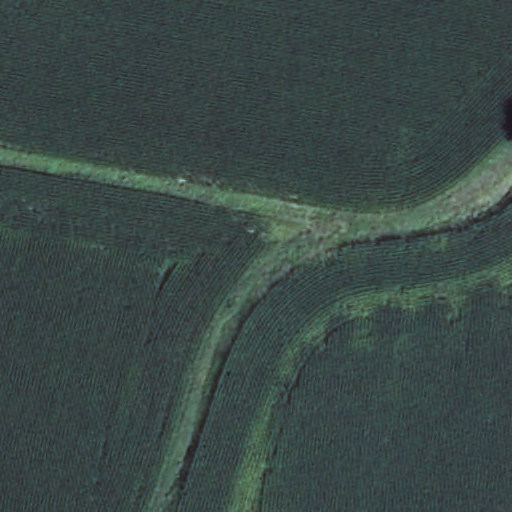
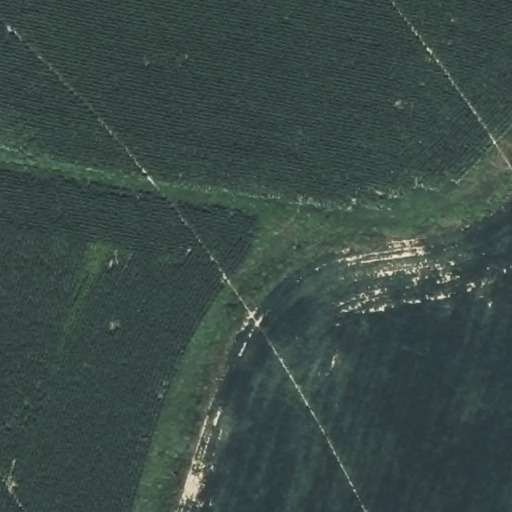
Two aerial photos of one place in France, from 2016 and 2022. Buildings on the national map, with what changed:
[]

